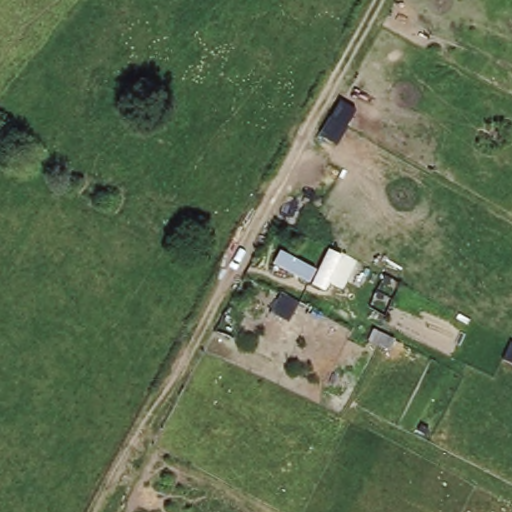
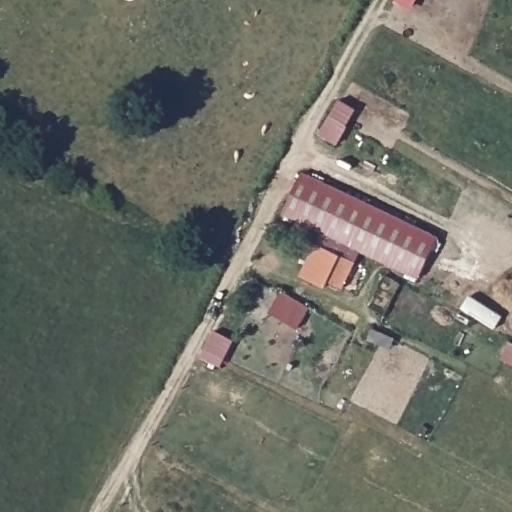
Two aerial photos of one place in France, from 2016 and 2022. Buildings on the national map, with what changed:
new [(439,236),(421,279),(361,252),(343,291),(329,284),(327,286),(302,276),(318,242),(327,246),(331,238),(283,215),(301,172),(439,236)]

